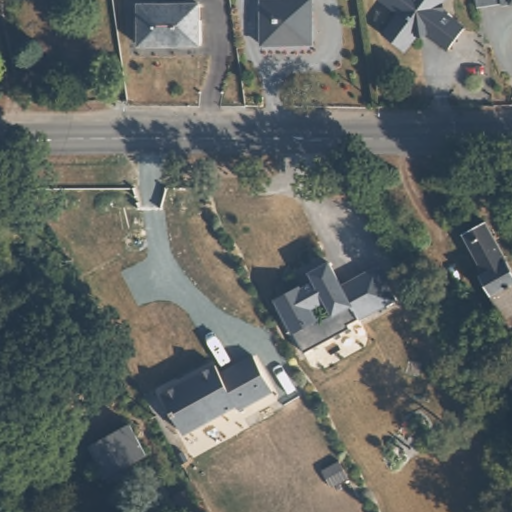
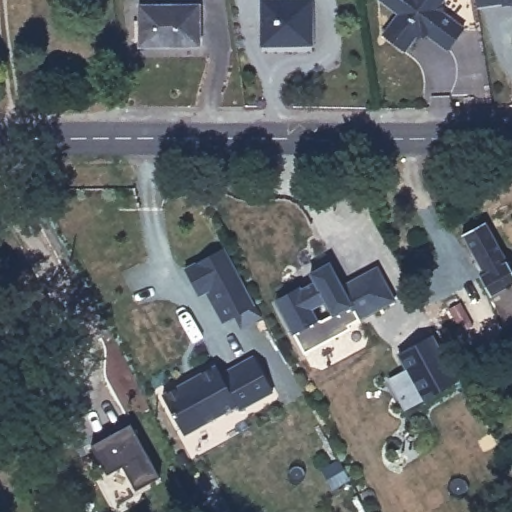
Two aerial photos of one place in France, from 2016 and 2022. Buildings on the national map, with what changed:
unchanged [(263,45),(260,0),(310,0),(315,42),(263,45)]
unchanged [(463,24),(448,44),(427,27),(415,29),(401,45),(382,29),(399,8),(390,0),(440,0),(440,6),(463,24)]
unchanged [(199,46),(139,44),(140,4),(198,6),(199,46)]
unchanged [(468,224),(494,212),(512,250),(512,317),(509,319),(486,274),(492,270),(468,224)]
new [(224,250),(255,306),(223,324),(207,292),(200,296),(185,267),(224,250)]
unchanged [(277,300),(314,284),(311,273),(332,262),(343,283),(380,266),(399,301),(305,353),(277,300)]
new [(434,334),(449,360),(446,362),(455,378),(457,377),(459,382),(423,401),(405,411),(387,379),(406,370),(397,355),(434,334)]
unchanged [(455,378),(446,362),(466,351),(475,368),(455,378)]
unchanged [(213,368),(219,376),(252,357),(272,392),(239,412),(237,408),(186,436),(162,396),(213,368)]
unchanged [(113,477),(105,466),(89,439),(131,414),(148,443),(131,452),(137,463),(113,477)]

